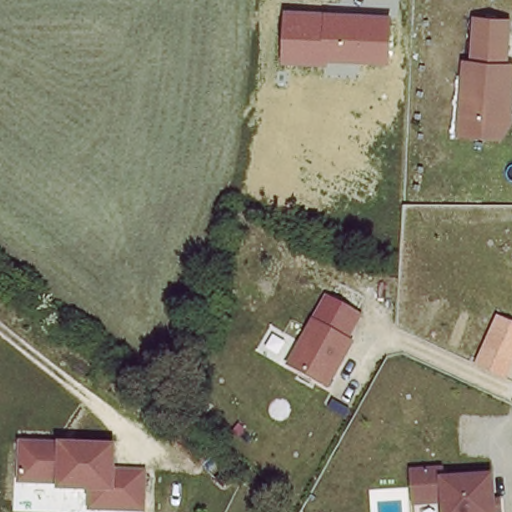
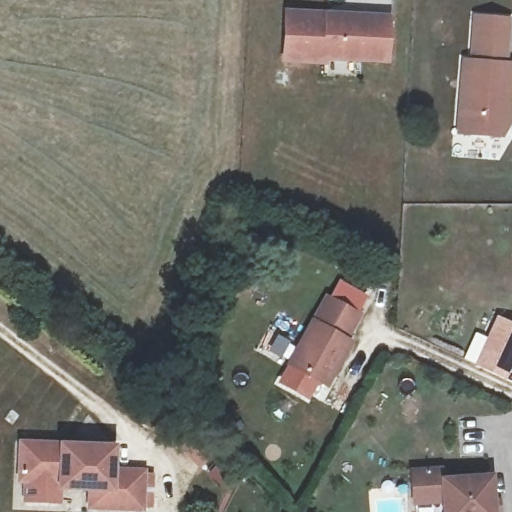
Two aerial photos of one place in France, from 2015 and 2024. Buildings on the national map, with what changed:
unchanged [(328,60),(328,65),(283,63),(285,9),(392,14),(389,64),(328,60)]
unchanged [(461,58),(468,58),(473,13),(510,16),(507,60),(512,60),(512,90),(508,139),(454,135),(461,58)]
unchanged [(334,296),(344,280),(367,293),(358,310),(366,315),(326,388),(284,367),(325,291),(334,296)]
unchanged [(508,378),(476,365),(497,316),(512,323),(512,367),(508,378)]
unchanged [(21,441),(114,445),(113,469),(144,470),(142,507),(90,505),(90,487),(59,485),(60,480),(20,477),(21,441)]
unchanged [(442,512),(442,507),(413,507),(412,466),(440,463),(442,477),(496,476),(496,512),(442,512)]

